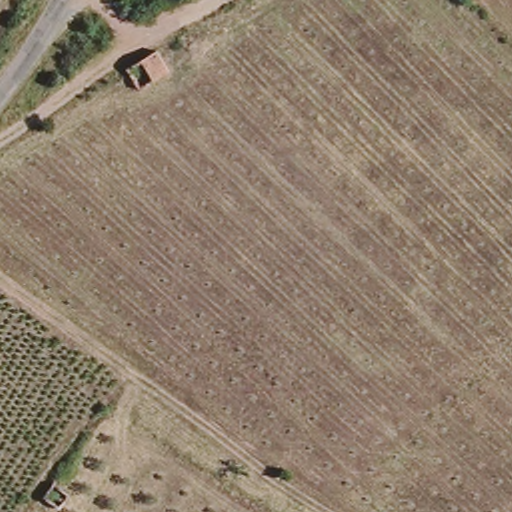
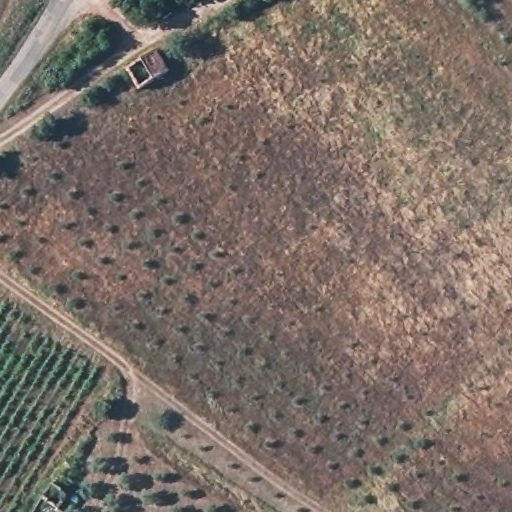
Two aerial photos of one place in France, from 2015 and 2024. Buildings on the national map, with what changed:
unchanged [(170,71),(141,88),(127,70),(158,51),(170,71)]

